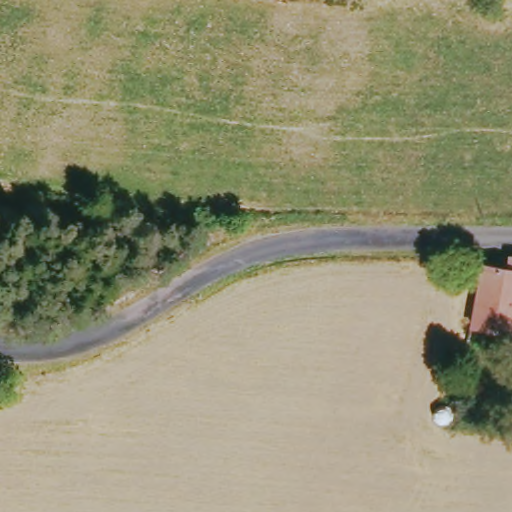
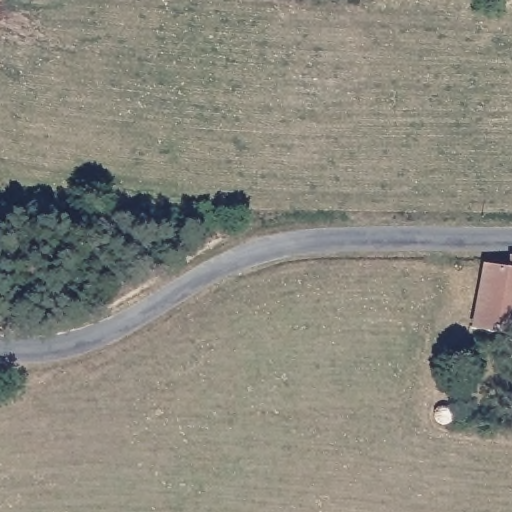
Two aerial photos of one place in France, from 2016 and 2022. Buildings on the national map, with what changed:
unchanged [(480,272),(481,267),(512,268),(512,276),(480,272)]
unchanged [(470,333),(480,272),(512,276),(512,339),(470,333)]

